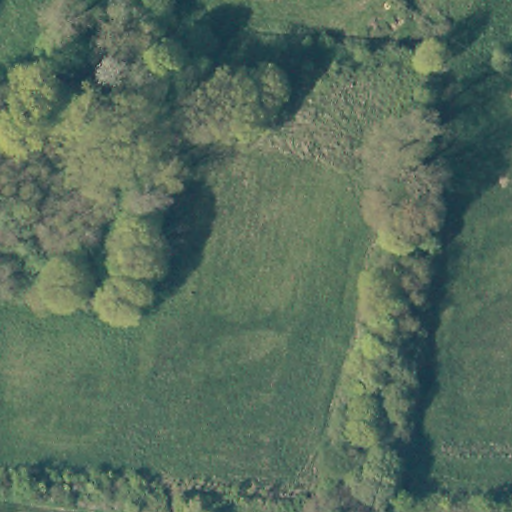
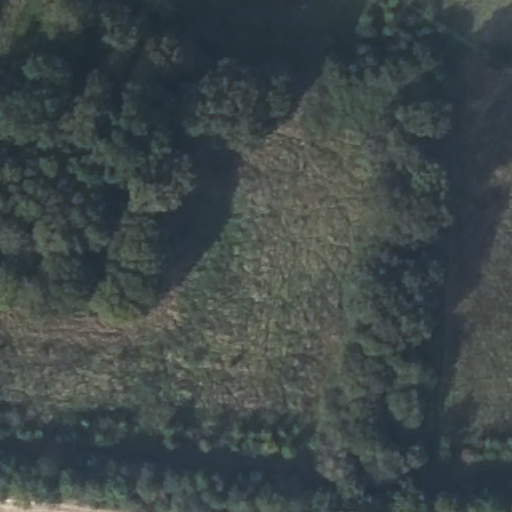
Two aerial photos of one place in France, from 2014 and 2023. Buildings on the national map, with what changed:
unchanged [(261,81),(263,85),(262,91),(257,93),(253,89),(252,84),(255,80),(261,81)]

